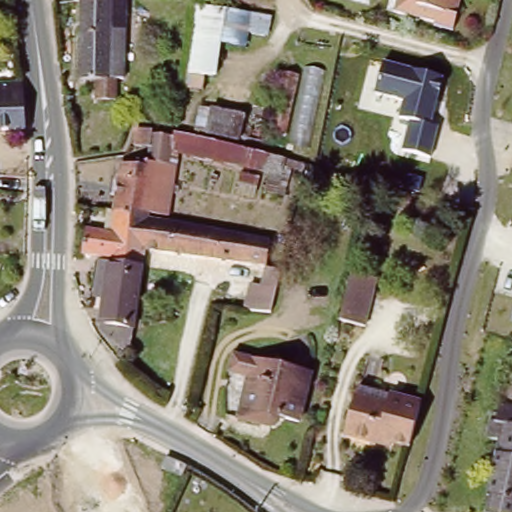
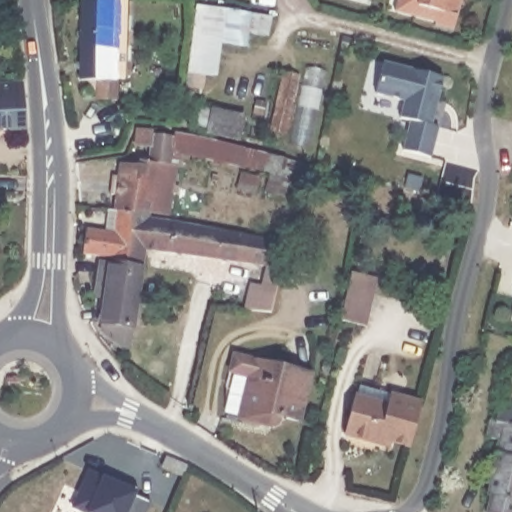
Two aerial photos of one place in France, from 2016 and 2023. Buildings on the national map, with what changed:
unchanged [(128,77),(121,78),(121,98),(100,99),(100,90),(91,90),(93,79),(83,79),(86,0),(131,0),(128,77)]
unchanged [(453,32),(390,10),(393,0),(463,0),(453,32)]
unchanged [(191,10),(214,14),(219,14),(244,18),(239,52),(215,47),(211,81),(203,80),(181,77),(191,10)]
unchanged [(446,77),(434,125),(439,126),(429,160),(401,151),(406,120),(400,116),(404,103),(376,96),(384,62),(446,77)]
unchanged [(0,134),(0,87),(23,87),(25,134),(0,134)]
unchanged [(207,137),(211,114),(241,121),(238,142),(207,137)]
unchanged [(148,218),(113,213),(114,198),(106,197),(109,180),(116,181),(118,168),(143,170),(144,161),(147,161),(148,151),(134,150),(135,134),(151,135),(151,139),(173,142),(170,157),(168,167),(176,169),(168,221),(161,220),(148,218)]
unchanged [(281,181),(170,157),(173,142),(173,137),(224,147),(285,165),(281,181)]
unchanged [(108,212),(113,213),(148,218),(148,223),(144,243),(104,236),(104,234),(108,212)]
unchanged [(184,229),(266,245),(260,269),(146,254),(143,254),(144,243),(148,223),(184,229)]
unchanged [(100,337),(101,329),(99,328),(108,261),(82,257),(85,234),(104,236),(144,243),(143,254),(135,315),(129,361),(100,337)]
unchanged [(270,318),(243,315),(253,273),(279,280),(270,318)]
unchanged [(376,282),(366,328),(344,323),(354,276),(376,282)]
unchanged [(293,417),(258,407),(255,417),(233,412),(243,371),(224,367),(229,348),(268,358),(305,367),(293,417)]
unchanged [(372,433),(371,437),(338,429),(348,391),(380,400),(383,391),(416,397),(409,423),(404,440),(372,433)]
unchanged [(485,495),(498,439),(486,437),(489,420),(494,420),(497,403),(512,406),(512,512),(485,512),(488,496),(485,495)]
new [(109,482),(111,477),(138,490),(134,496),(148,503),(144,512),(85,512),(75,507),(90,473),(109,482)]

